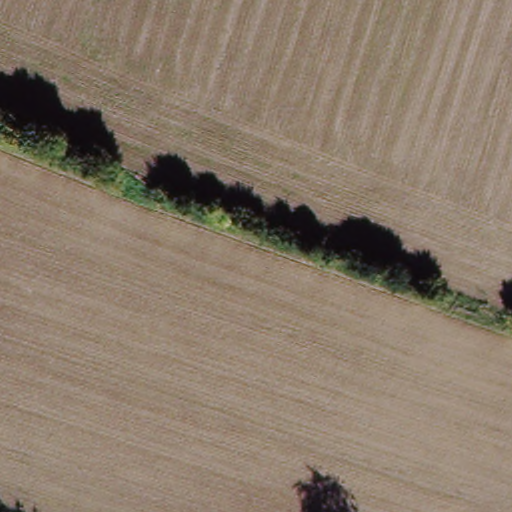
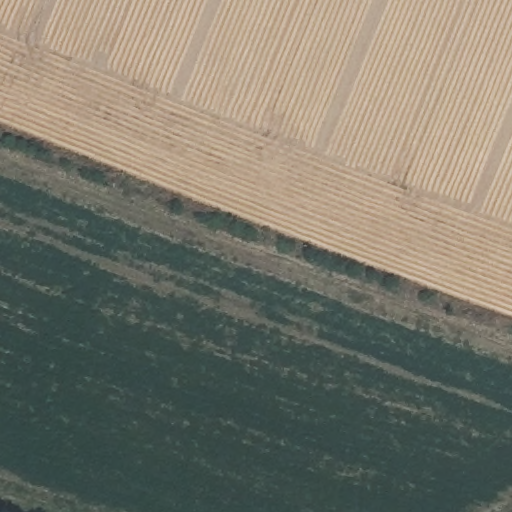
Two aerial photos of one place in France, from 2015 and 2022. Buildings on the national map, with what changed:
[]

